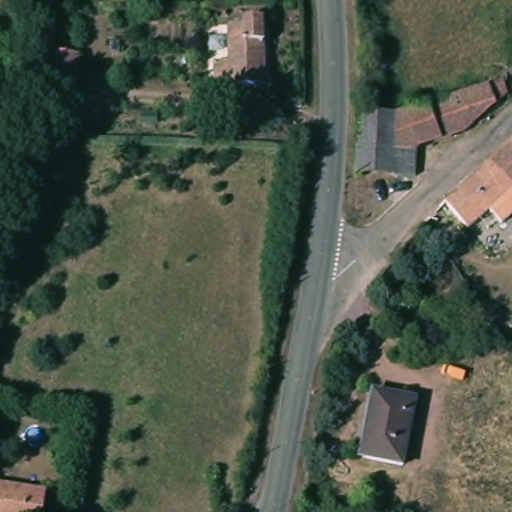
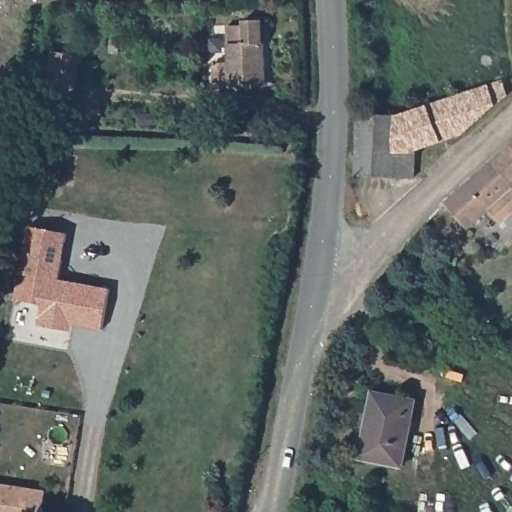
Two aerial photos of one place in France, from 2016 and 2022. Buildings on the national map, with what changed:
unchanged [(232,60),(229,25),(265,24),(269,83),(217,86),(216,61),(232,60)]
unchanged [(79,46),(79,103),(55,103),(56,46),(79,46)]
unchanged [(479,125),(480,130),(420,140),(400,144),(396,106),(489,88),(512,84),(512,98),(493,116),(479,125)]
unchanged [(360,113),(396,106),(400,144),(420,140),(423,174),(406,176),(406,171),(362,179),(362,152),(360,113)]
unchanged [(493,164),(512,147),(512,183),(493,164)]
unchanged [(493,164),(512,183),(512,222),(506,228),(492,213),(472,231),(449,205),(470,186),(493,164)]
new [(72,330),(47,327),(51,306),(25,301),(40,228),(76,235),(67,281),(119,290),(110,331),(82,326),(81,332),(72,330)]
unchanged [(372,428),(382,391),(423,401),(407,466),(369,458),(377,430),(372,428)]
unchanged [(44,512),(0,512),(0,480),(47,488),(44,512)]

